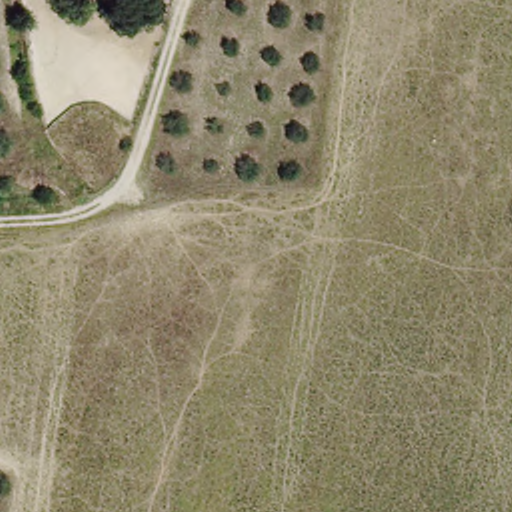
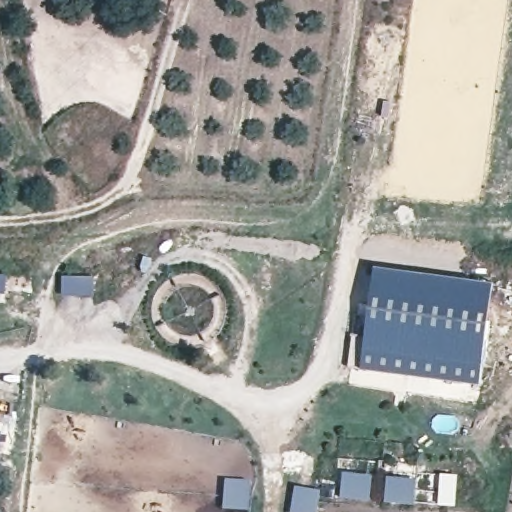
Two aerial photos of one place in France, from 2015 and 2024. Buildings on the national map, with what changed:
new [(362,370),(375,267),(495,282),(482,387),(362,370)]

